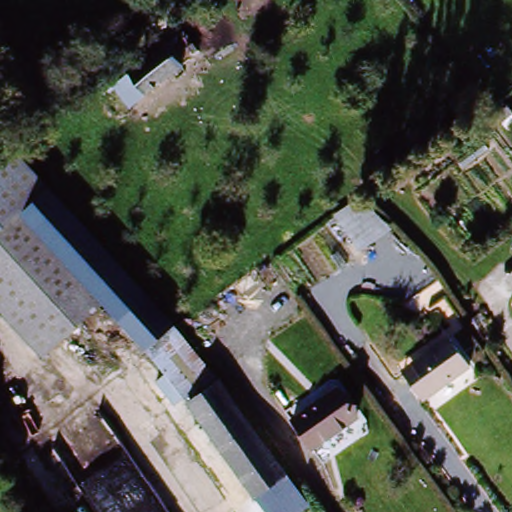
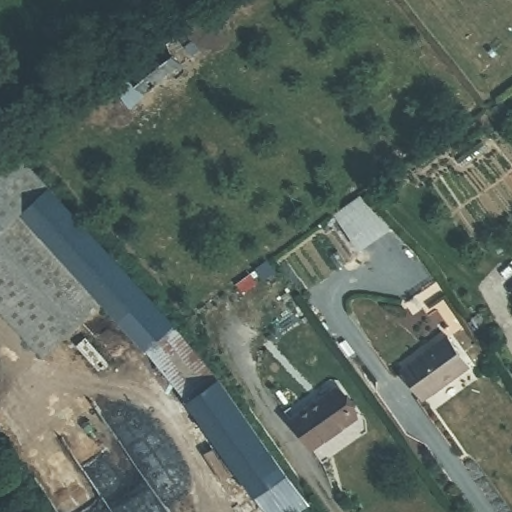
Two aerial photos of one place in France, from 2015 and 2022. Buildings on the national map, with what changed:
unchanged [(127,76),(182,34),(198,55),(143,97),(127,76)]
unchanged [(200,442),(151,367),(106,310),(43,362),(0,309),(0,123),(181,344),(294,494),(268,512),(252,512),(200,442)]
unchanged [(359,252),(328,216),(357,196),(391,229),(359,252)]
unchanged [(442,337),(466,367),(430,395),(406,364),(442,337)]
unchanged [(358,412),(317,446),(294,418),(335,385),(358,412)]
unchanged [(307,512),(268,512),(294,494),(307,512)]

